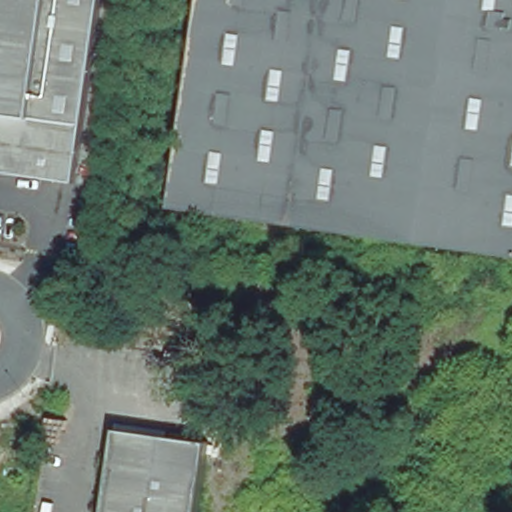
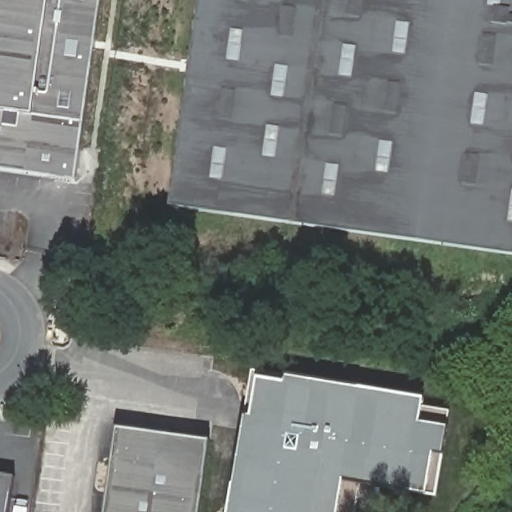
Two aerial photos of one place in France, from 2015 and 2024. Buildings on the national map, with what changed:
unchanged [(0,172),(0,0),(103,0),(77,184),(0,172)]
unchanged [(169,207),(198,0),(512,0),(512,256),(169,207)]
new [(287,377),(426,401),(424,410),(451,414),(449,430),(444,456),(438,497),(427,496),(426,497),(363,487),(358,512),(229,512),(246,418),(253,372),(287,377)]
unchanged [(214,443),(204,512),(108,512),(120,430),(214,443)]
new [(0,475),(15,478),(9,512),(0,512),(0,475)]

